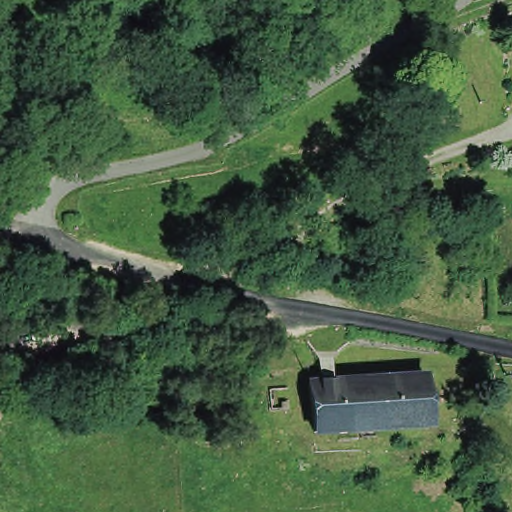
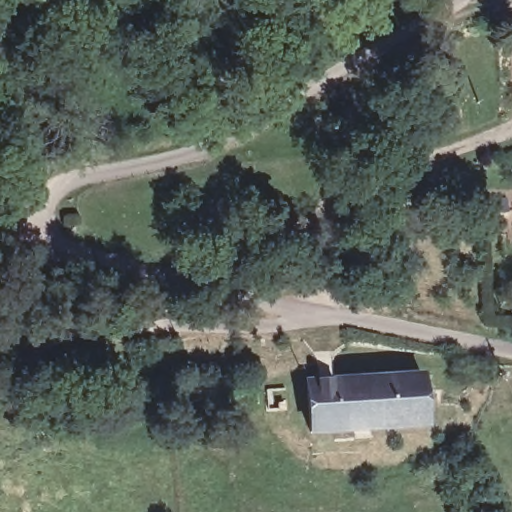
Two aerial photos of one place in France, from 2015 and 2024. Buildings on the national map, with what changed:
unchanged [(351,437),(350,428),(306,432),(303,379),(425,373),(427,423),(370,427),(370,436),(351,437)]
unchanged [(282,407),(264,408),(262,386),(281,385),(282,407)]

